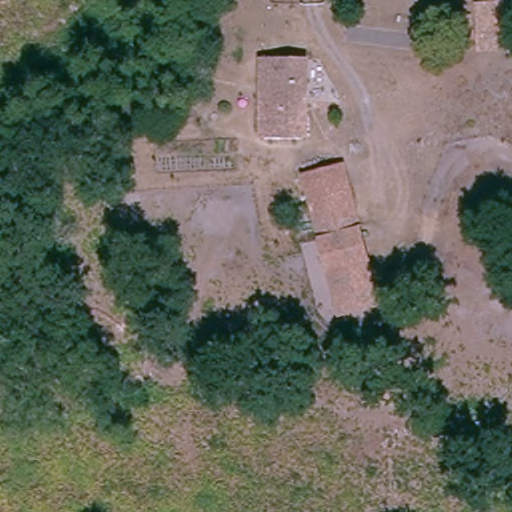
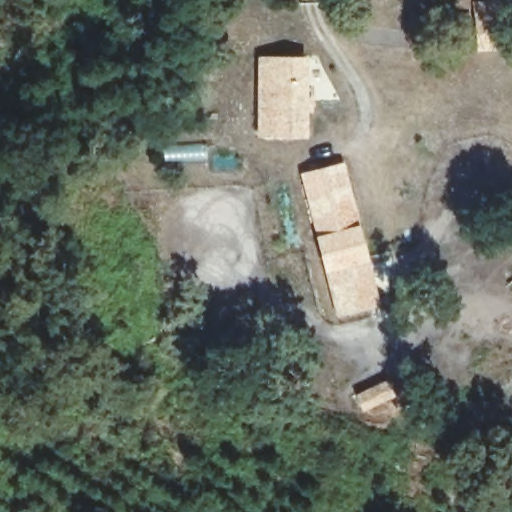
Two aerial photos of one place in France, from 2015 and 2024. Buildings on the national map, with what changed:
unchanged [(508,50),(478,51),(477,38),(476,8),(506,7),(507,34),(508,50)]
unchanged [(468,36),(450,35),(448,35),(450,19),(470,20),(468,36)]
unchanged [(260,138),(262,61),(302,63),(307,63),(305,139),(260,138)]
unchanged [(315,253),(302,191),(341,181),(346,206),(354,244),(315,253)]
unchanged [(354,244),(356,253),(361,274),(322,283),(315,253),(354,244)]
unchanged [(361,274),(372,320),(333,330),(322,283),(361,274)]
unchanged [(390,379),(395,393),(353,411),(347,397),(390,379)]

